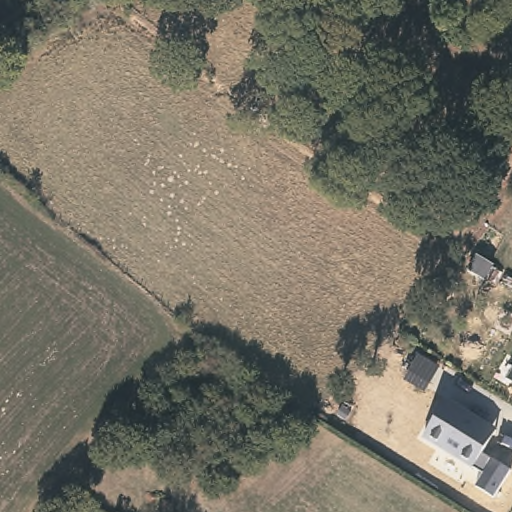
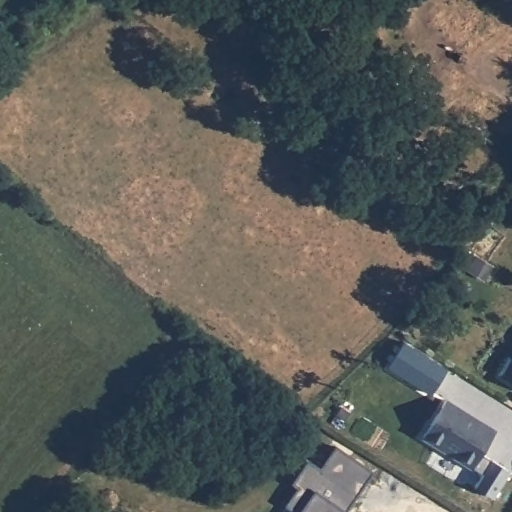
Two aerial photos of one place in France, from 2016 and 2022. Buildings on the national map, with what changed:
unchanged [(512,372),(512,380),(508,378),(512,372)]
unchanged [(496,429),(482,454),(511,470),(495,497),(477,486),(484,473),(475,467),(472,469),(424,439),(450,398),(496,429)]
new [(346,512),(296,512),(285,505),(297,487),(291,483),(307,457),(321,467),(336,444),(373,470),(346,512)]

